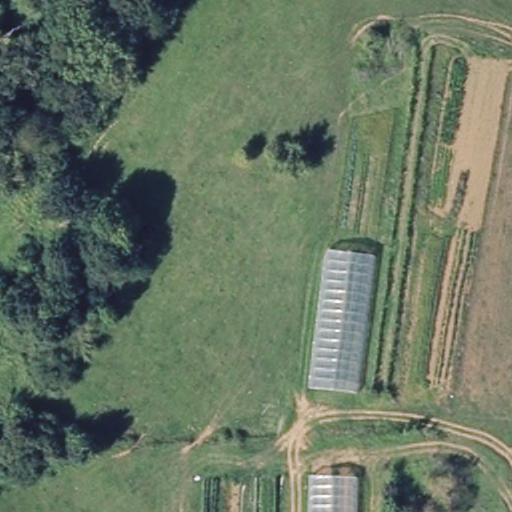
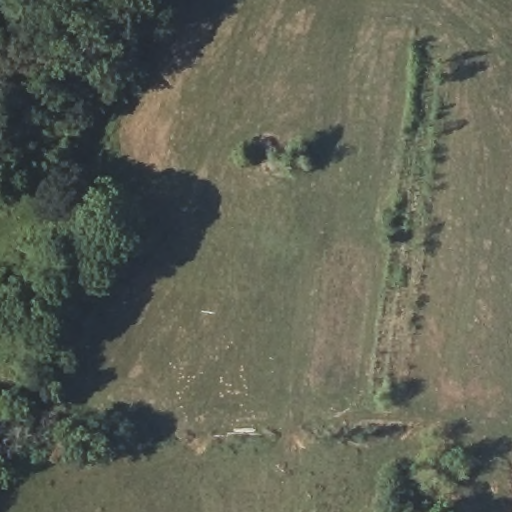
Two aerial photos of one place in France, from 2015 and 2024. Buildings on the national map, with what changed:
new [(327,248),(373,253),(358,392),(308,386),(327,248)]

